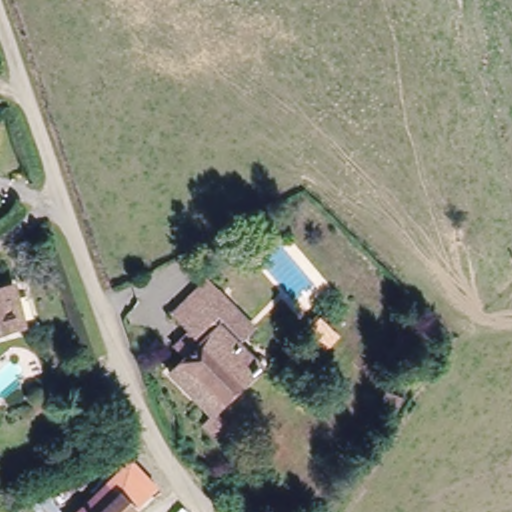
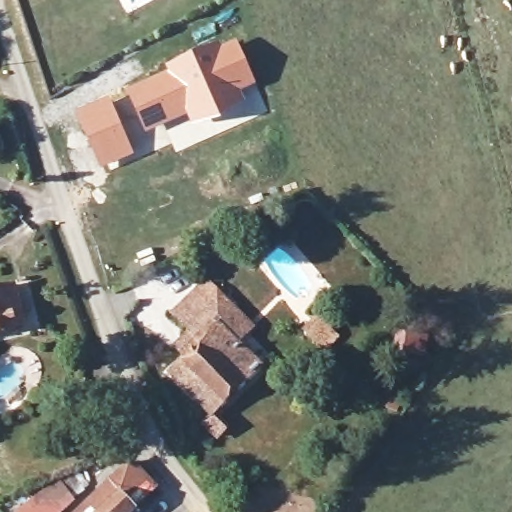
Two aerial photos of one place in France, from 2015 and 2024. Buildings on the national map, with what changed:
new [(167,71),(165,66),(195,52),(236,37),(267,111),(229,120),(191,125),(188,116),(145,132),(125,89),(167,71)]
new [(110,96),(134,154),(101,167),(74,110),(110,96)]
unchanged [(179,346),(189,335),(192,332),(171,309),(206,273),(253,319),(232,343),(214,323),(187,352),(179,346)]
unchanged [(16,275),(27,310),(0,320),(0,280),(16,275)]
unchanged [(218,412),(172,368),(187,352),(214,323),(232,343),(247,357),(260,343),(270,352),(218,412)]
new [(135,512),(75,512),(132,458),(159,487),(137,510),(135,512)]
unchanged [(16,512),(57,478),(75,502),(64,512),(16,512)]
demolished [(75,512),(112,478),(139,506),(132,512),(75,512)]

